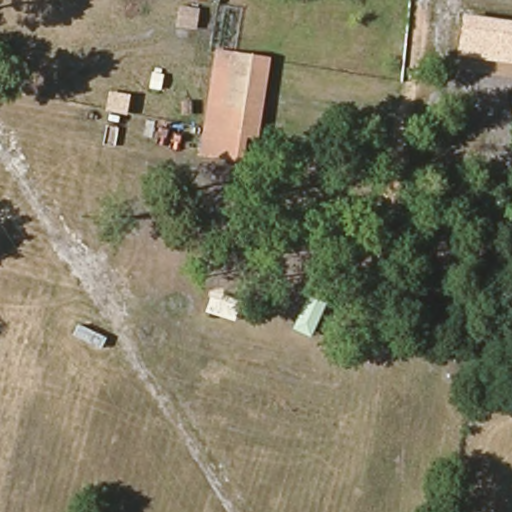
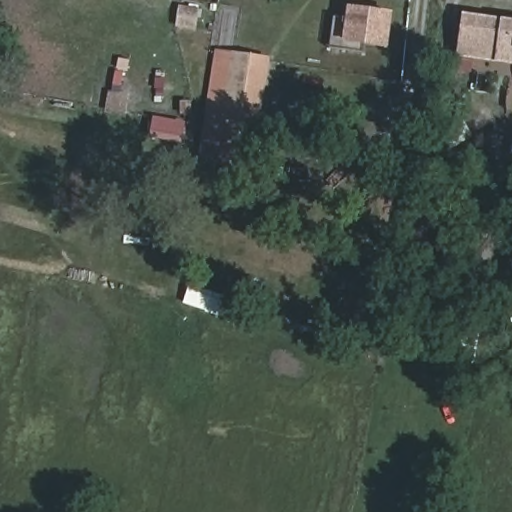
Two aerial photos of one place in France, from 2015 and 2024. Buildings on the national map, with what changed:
new [(346,6),(389,12),(388,17),(392,18),(389,44),(384,44),(383,50),(341,44),(346,6)]
unchanged [(502,20),(512,22),(512,63),(495,61),(457,56),(462,14),(502,20)]
unchanged [(254,165),(200,155),(216,48),(272,57),(254,165)]

